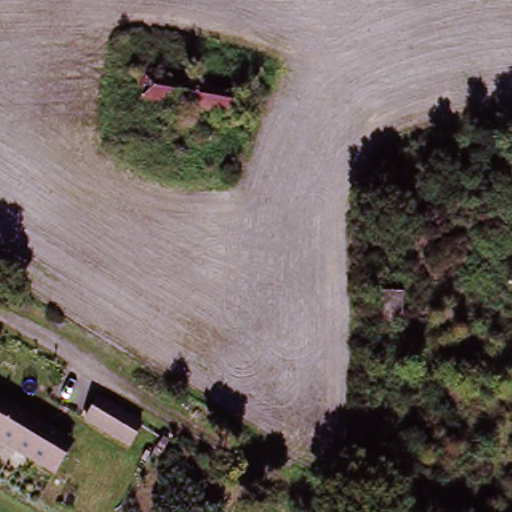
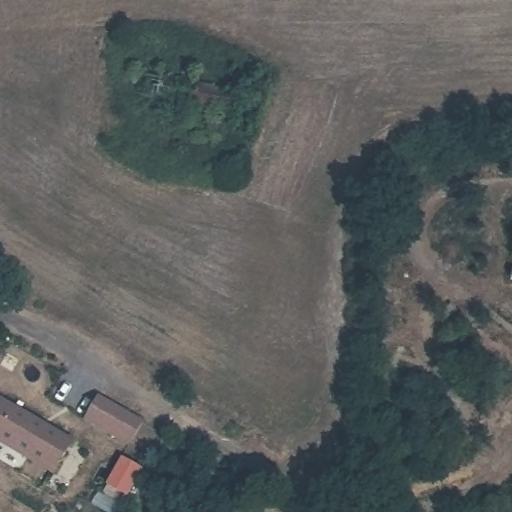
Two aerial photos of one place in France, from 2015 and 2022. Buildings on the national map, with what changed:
unchanged [(232,94),(228,120),(136,102),(142,77),(232,94)]
unchanged [(58,468),(0,435),(0,395),(76,438),(58,468)]
unchanged [(89,419),(104,395),(147,420),(133,445),(89,419)]

